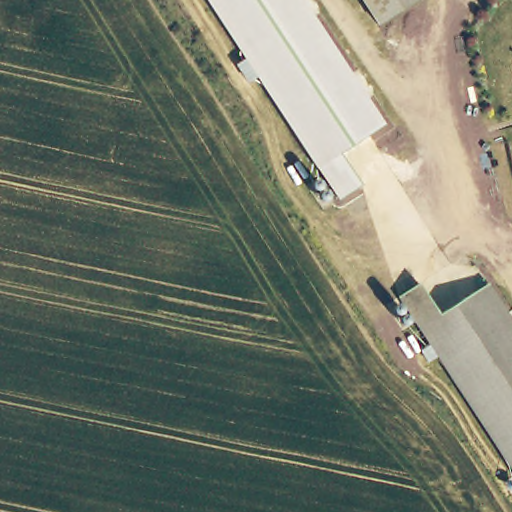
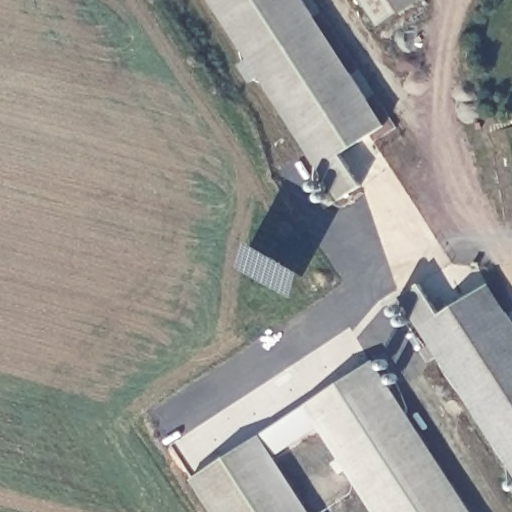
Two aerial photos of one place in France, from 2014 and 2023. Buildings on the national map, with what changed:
unchanged [(302,3),(382,126),(341,154),(361,185),(340,199),(320,172),(322,165),(212,0),(301,0),(302,3)]
unchanged [(378,27),(361,0),(417,0),(378,27)]
unchanged [(405,296),(425,282),(442,311),(470,295),(490,283),(512,318),(512,457),(426,322),(422,324),(405,296)]
new [(469,512),(371,512),(316,427),(273,457),(309,512),(210,512),(189,480),(371,362),(469,512)]

